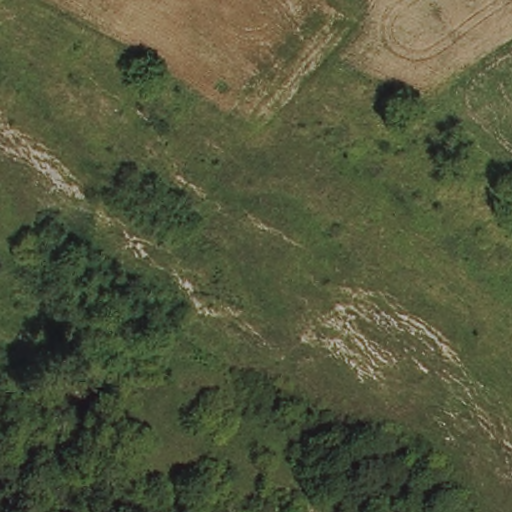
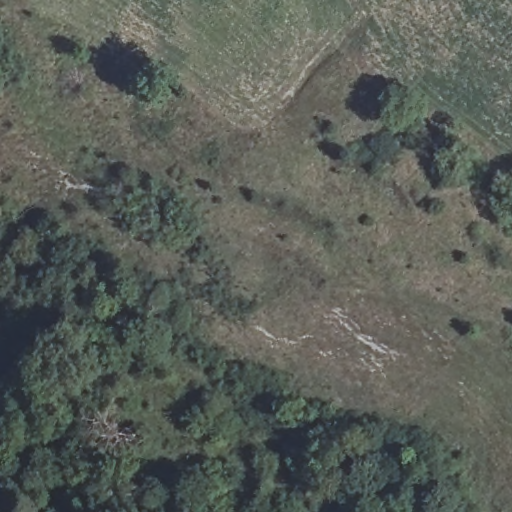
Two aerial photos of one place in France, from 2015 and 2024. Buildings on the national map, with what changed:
[]

